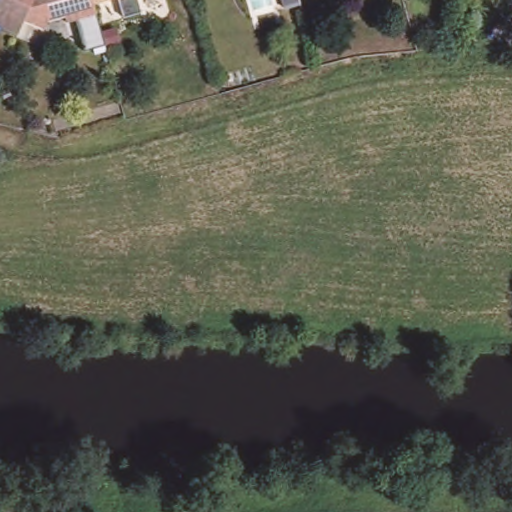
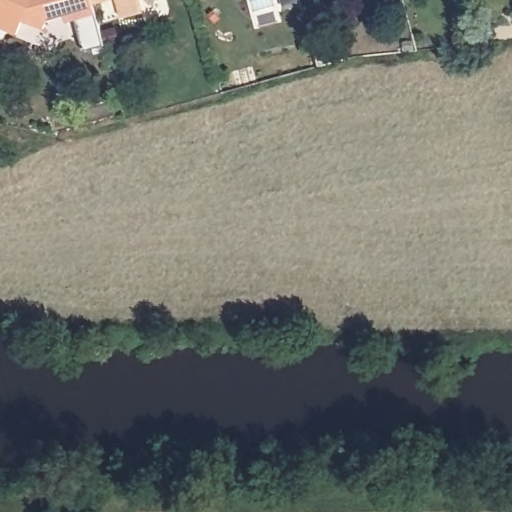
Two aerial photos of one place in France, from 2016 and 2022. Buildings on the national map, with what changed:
unchanged [(65,22),(61,10),(47,14),(42,28),(20,19),(13,35),(0,30),(0,0),(89,0),(91,4),(93,14),(65,22)]
unchanged [(91,4),(89,0),(108,0),(91,4)]
unchanged [(139,16),(121,21),(114,0),(134,0),(139,16)]

